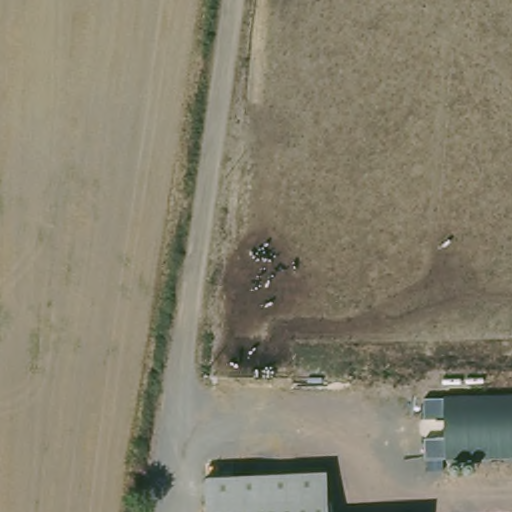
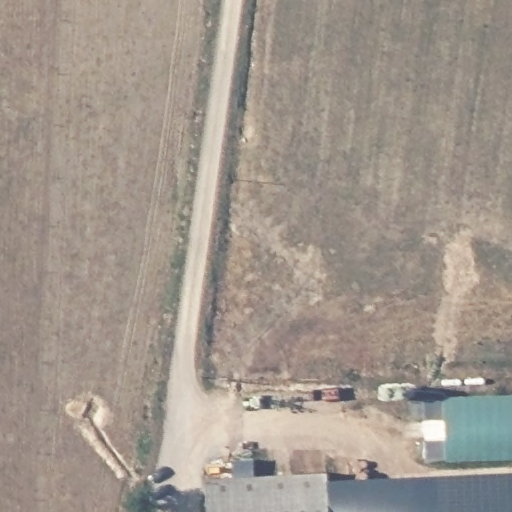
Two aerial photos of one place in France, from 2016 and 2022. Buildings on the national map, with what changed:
unchanged [(425,459),(425,438),(445,438),(445,419),(425,419),(424,398),(445,396),(512,395),(512,457),(445,459),(425,459)]
new [(331,512),(330,495),(330,477),(512,469),(512,512),(331,512)]
unchanged [(209,482),(330,477),(330,495),(331,512),(210,512),(209,489),(209,482)]

